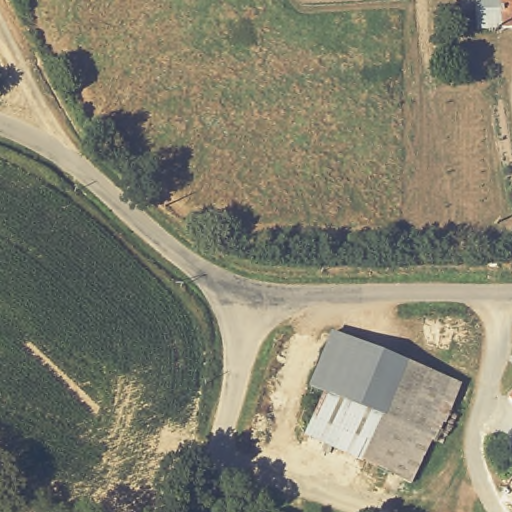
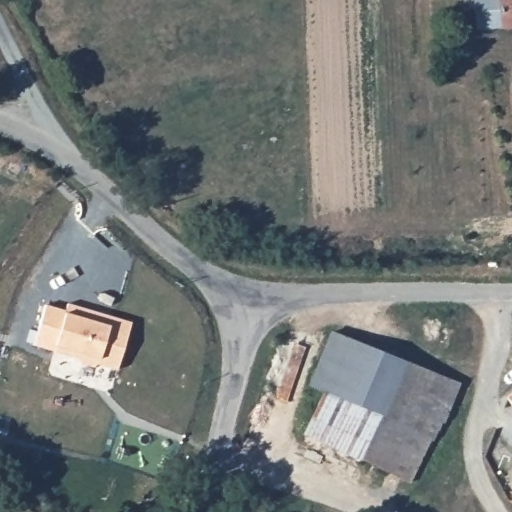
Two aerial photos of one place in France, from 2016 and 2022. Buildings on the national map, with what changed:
unchanged [(512,29),(481,31),(480,11),(468,11),(468,0),(512,0),(512,29)]
new [(99,358),(96,365),(34,344),(49,297),(69,304),(74,301),(85,304),(87,309),(131,323),(118,365),(99,358)]
unchanged [(303,436),(321,393),(307,387),(329,333),(407,365),(362,463),(303,436)]
unchanged [(452,398),(408,485),(362,463),(407,365),(468,391),(464,403),(452,398)]
unchanged [(512,396),(512,405),(507,400),(512,396)]
unchanged [(512,472),(512,481),(509,480),(512,472)]

